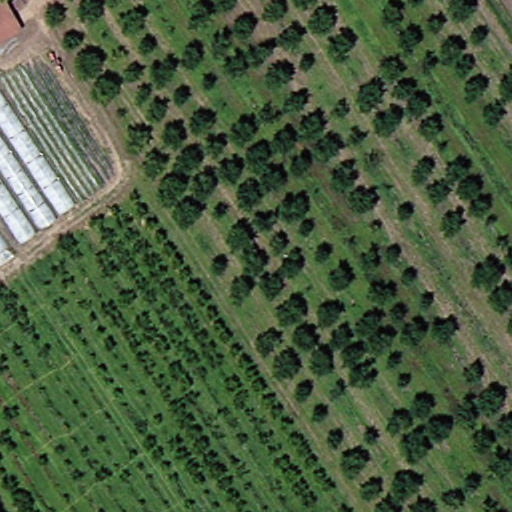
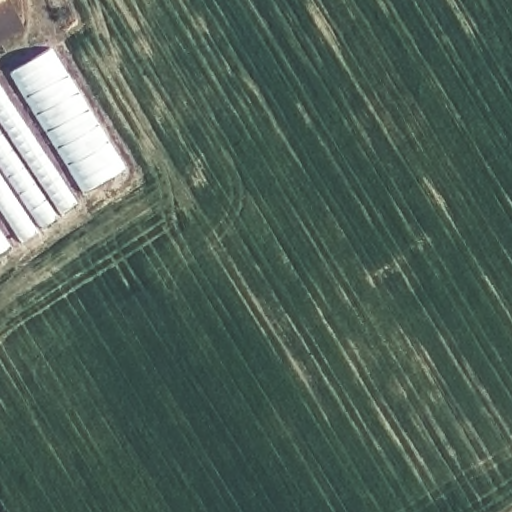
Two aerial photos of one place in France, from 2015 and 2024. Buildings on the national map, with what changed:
unchanged [(10,0),(28,26),(0,44),(0,0),(11,0),(10,0)]
new [(9,73),(51,47),(123,169),(81,195),(9,73)]
unchanged [(76,205),(24,241),(0,206),(0,88),(76,205)]
unchanged [(16,257),(0,269),(0,233),(16,257)]

